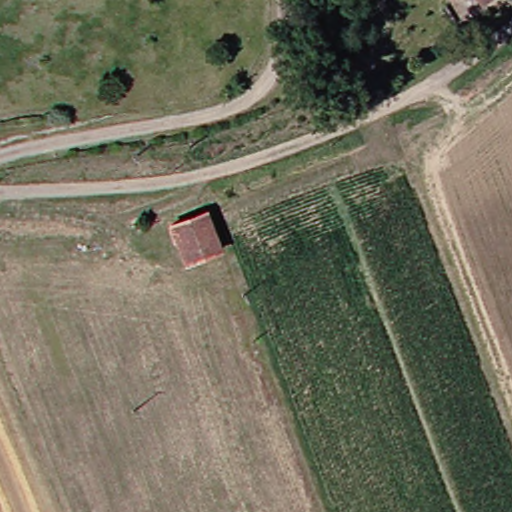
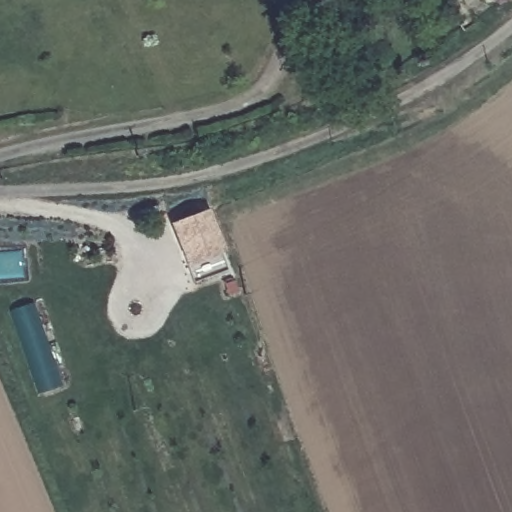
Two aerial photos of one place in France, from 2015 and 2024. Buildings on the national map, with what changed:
unchanged [(492,0),(496,0),(493,2),(492,0)]
unchanged [(207,215),(220,252),(189,265),(176,226),(207,215)]

